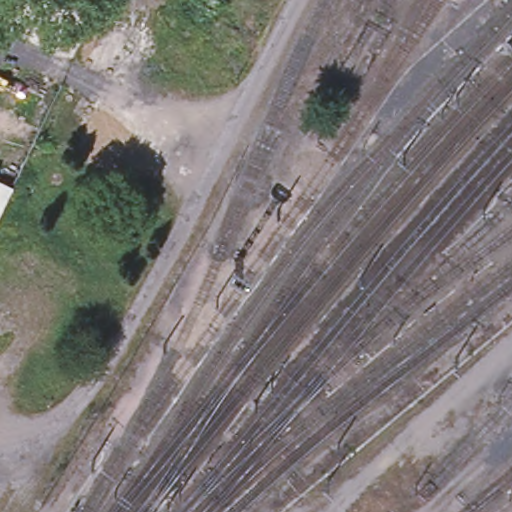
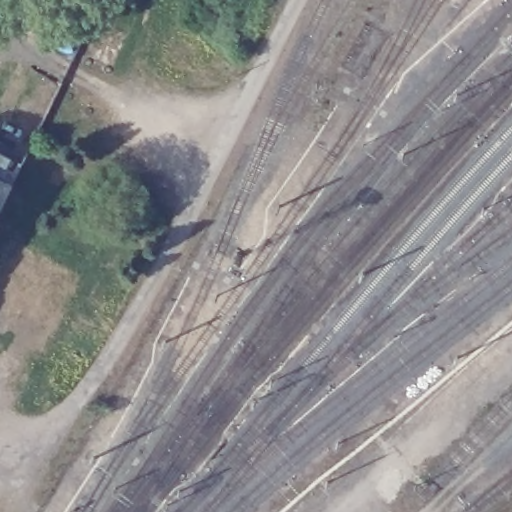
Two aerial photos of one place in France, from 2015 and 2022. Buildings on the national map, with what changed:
unchanged [(13,180),(0,207),(0,173),(13,180)]

